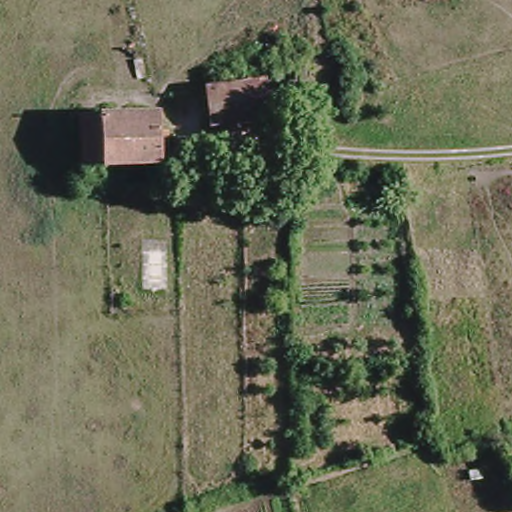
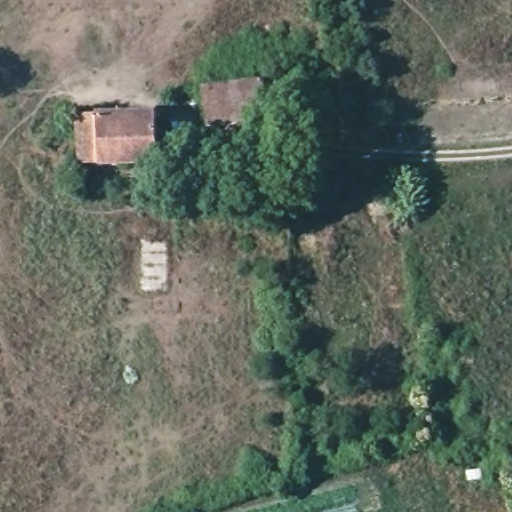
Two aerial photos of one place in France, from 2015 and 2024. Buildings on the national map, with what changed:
unchanged [(266,88),(270,132),(209,136),(208,91),(266,88)]
unchanged [(99,110),(178,106),(179,156),(103,163),(99,110)]
unchanged [(264,188),(265,170),(288,169),(289,188),(264,188)]

